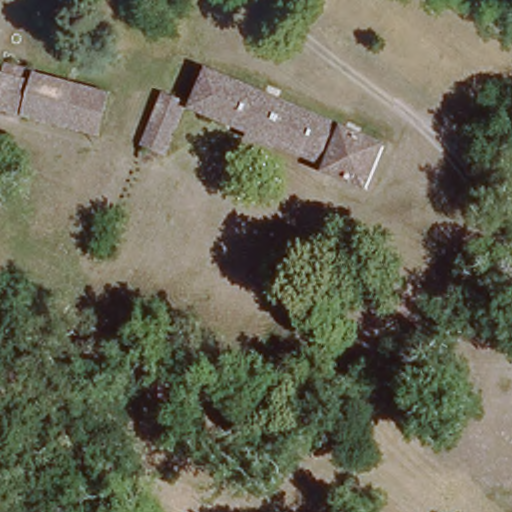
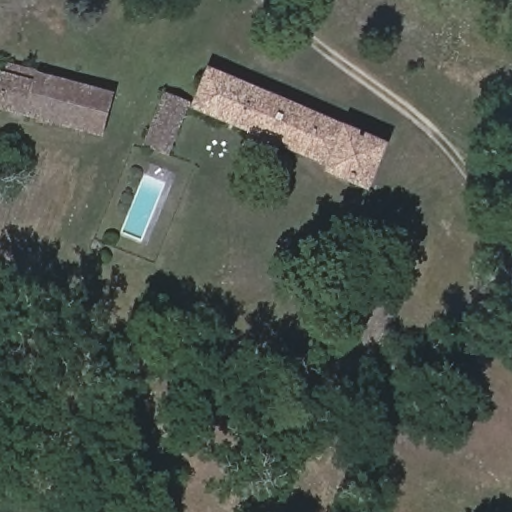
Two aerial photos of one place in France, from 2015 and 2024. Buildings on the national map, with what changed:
unchanged [(98,137),(81,133),(0,112),(0,95),(10,57),(38,64),(35,78),(91,94),(109,99),(98,137)]
unchanged [(194,101),(205,69),(389,142),(371,192),(326,175),(330,161),(197,115),(184,142),(171,140),(167,151),(148,143),(164,94),(194,101)]
unchanged [(325,448),(314,461),(295,443),(307,430),(325,448)]

